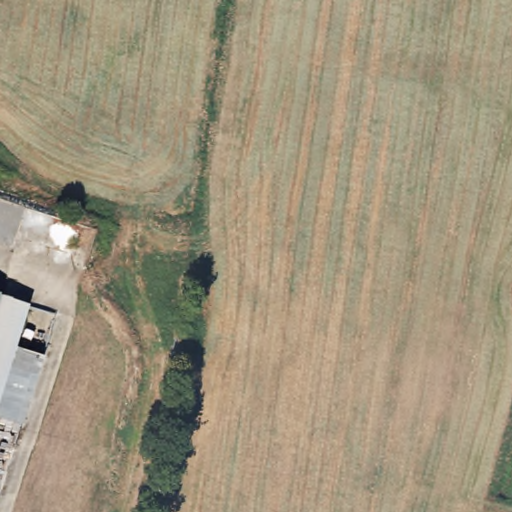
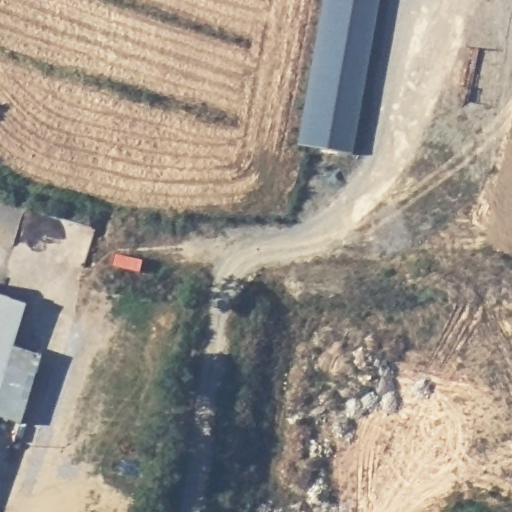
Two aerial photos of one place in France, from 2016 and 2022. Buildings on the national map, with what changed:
new [(380,0),(352,156),(298,146),(324,0),(380,0)]
unchanged [(4,374),(0,386),(0,284),(27,292),(4,374)]

